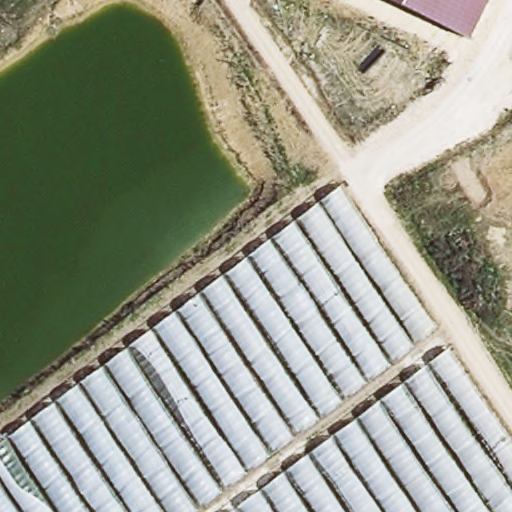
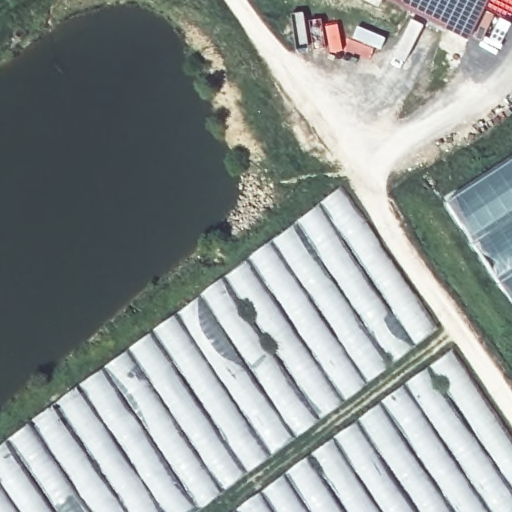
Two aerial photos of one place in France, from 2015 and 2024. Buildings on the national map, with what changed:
unchanged [(470,39),(390,0),(489,0),(470,39)]
new [(512,161),(512,301),(448,203),(512,161)]
unchanged [(196,512),(0,512),(0,447),(345,186),(440,328),(196,512)]
unchanged [(237,512),(455,347),(512,433),(512,512),(237,512)]

